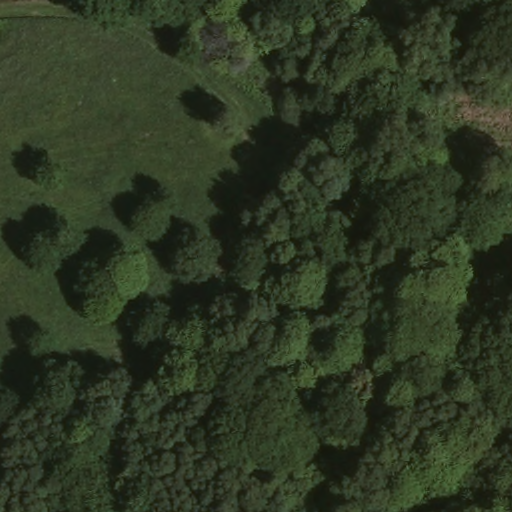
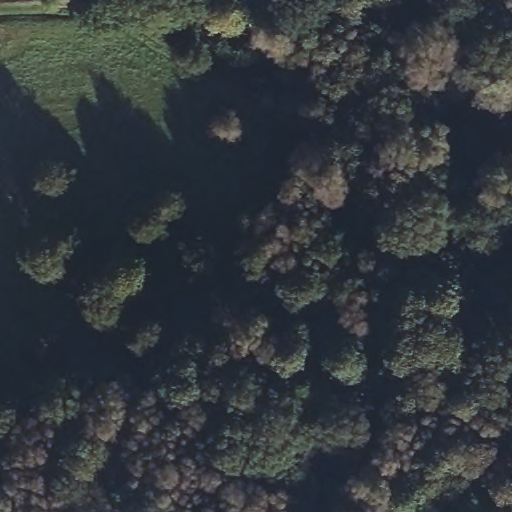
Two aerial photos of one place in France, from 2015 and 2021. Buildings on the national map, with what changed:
unchanged [(0,4),(0,0),(27,0),(0,4)]

